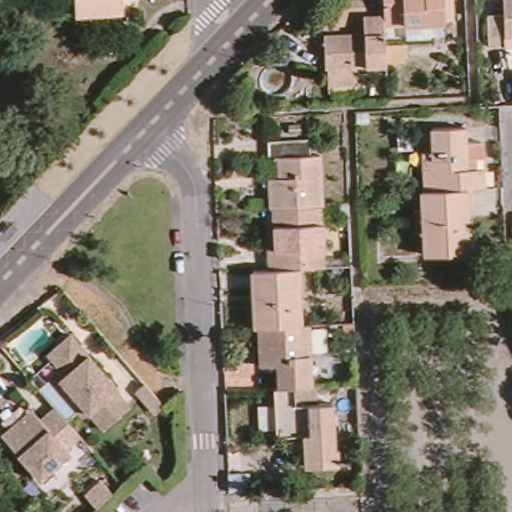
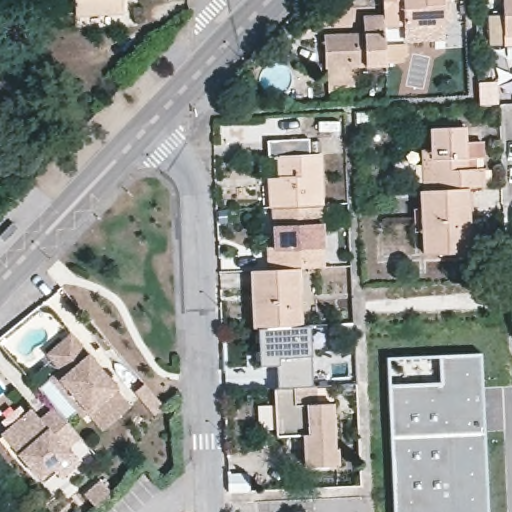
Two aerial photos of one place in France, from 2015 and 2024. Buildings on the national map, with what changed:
unchanged [(119,17),(71,20),(70,0),(119,0),(119,17)]
unchanged [(444,22),(384,25),(384,17),(383,0),(443,0),(444,22)]
unchanged [(510,40),(511,52),(494,52),(493,20),(509,20),(509,1),(512,1),(512,40),(510,40)]
unchanged [(358,90),(331,90),(330,69),(325,69),(324,36),(364,34),(363,18),(384,17),(384,25),(386,46),(406,46),(406,60),(386,61),(386,66),(357,67),(358,90)]
unchanged [(459,192),(419,194),(418,155),(427,155),(426,133),(459,131),(460,145),(477,145),(477,162),(469,162),(469,173),(477,173),(477,191),(459,192)]
unchanged [(268,183),(279,182),(278,162),(266,162),(266,145),(308,144),(309,160),(318,160),(320,210),(319,210),(272,212),(269,212),(268,183)]
unchanged [(463,257),(419,260),(416,195),(419,194),(459,192),(463,257)]
unchanged [(296,273),(269,275),(267,252),(274,252),(272,212),(319,210),(321,272),(296,273)]
unchanged [(251,275),(269,275),(296,273),(299,331),(259,332),(253,333),(251,275)]
unchanged [(313,391),(277,392),(276,369),(264,370),(264,350),(259,351),(259,332),(299,331),(306,330),(309,373),(325,373),(326,390),(313,391)]
unchanged [(64,368),(51,352),(74,333),(119,388),(118,390),(132,408),(104,430),(90,412),(85,417),(80,410),(68,420),(56,405),(41,386),(64,368)]
new [(394,512),(388,385),(443,384),(442,357),(482,355),(490,512),(394,512)]
unchanged [(314,400),(294,401),(294,410),(331,408),(332,453),(335,452),(336,470),(304,471),(304,455),(314,455),(314,440),(275,440),(273,392),(277,392),(313,391),(314,400)]
unchanged [(70,451),(39,476),(18,451),(3,431),(9,426),(28,411),(33,406),(40,415),(42,417),(56,405),(68,420),(81,435),(66,447),(70,451)]

